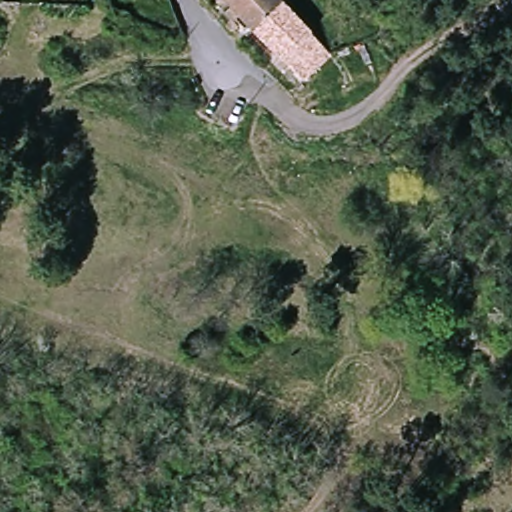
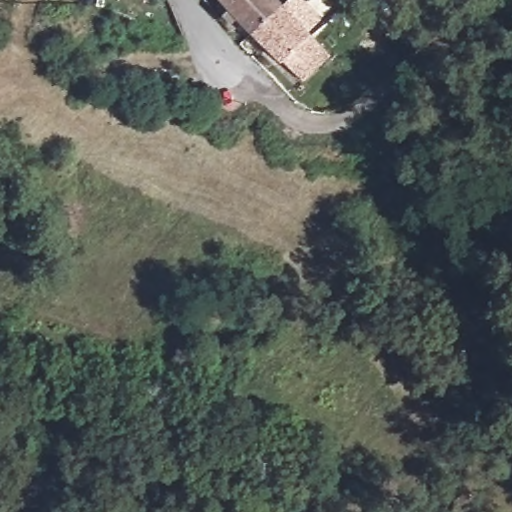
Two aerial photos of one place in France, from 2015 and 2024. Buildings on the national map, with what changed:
unchanged [(259,39),(212,0),(274,0),(289,13),(259,39)]
unchanged [(285,61),(259,39),(289,13),(345,59),(315,84),(285,61)]

